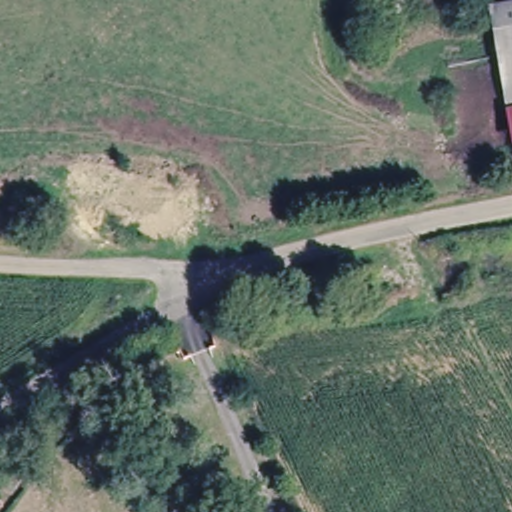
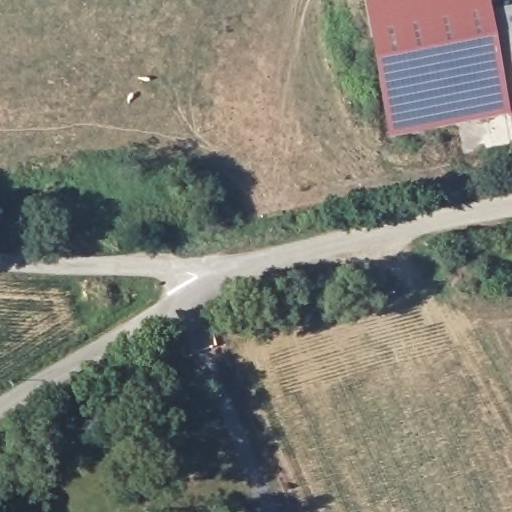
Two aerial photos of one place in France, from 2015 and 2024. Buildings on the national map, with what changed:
new [(508,113),(388,137),(362,0),(488,0),(491,11),(487,12),(508,113)]
unchanged [(487,12),(491,11),(512,7),(512,112),(508,113),(487,12)]
unchanged [(512,133),(508,113),(512,112),(512,133)]

